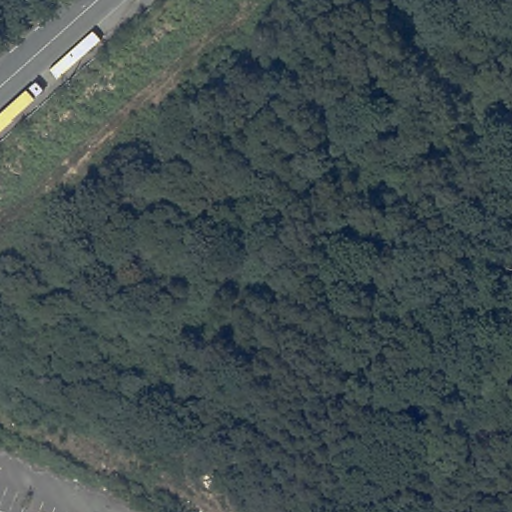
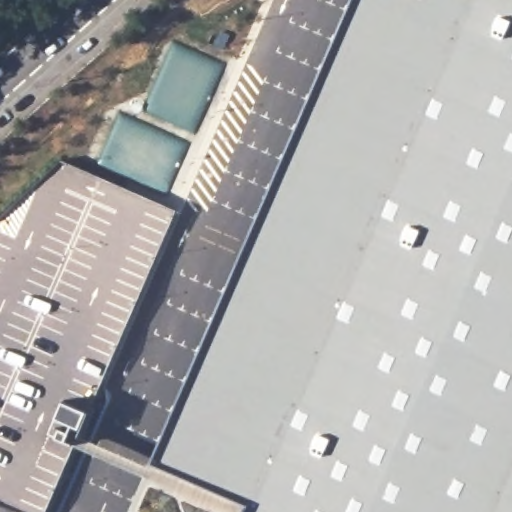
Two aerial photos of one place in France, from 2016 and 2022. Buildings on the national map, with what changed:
new [(241,512),(245,503),(147,461),(349,0),(512,0),(512,512),(241,512)]

